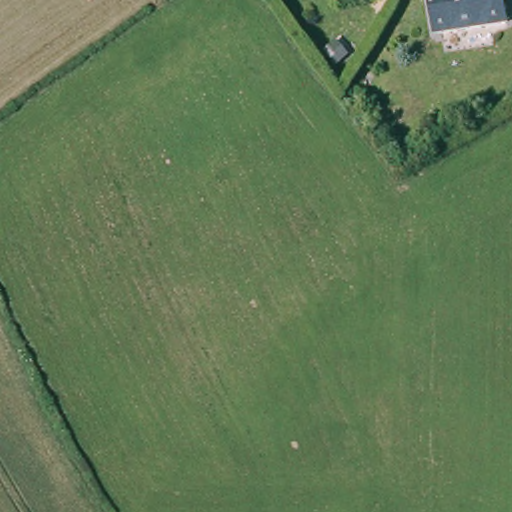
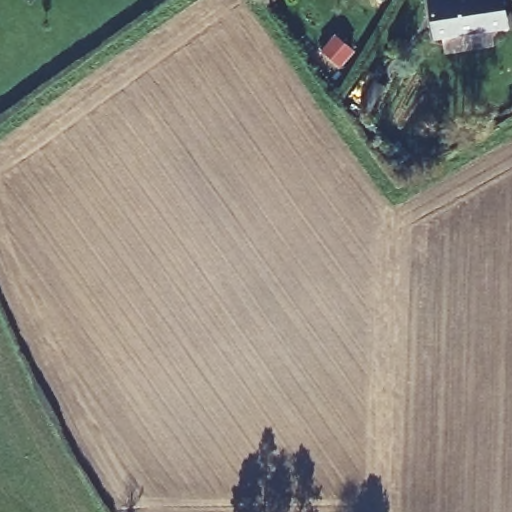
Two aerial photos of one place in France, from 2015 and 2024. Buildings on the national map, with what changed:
unchanged [(446,46),(424,50),(418,12),(440,9),(439,0),(512,0),(512,17),(442,27),(446,46)]

